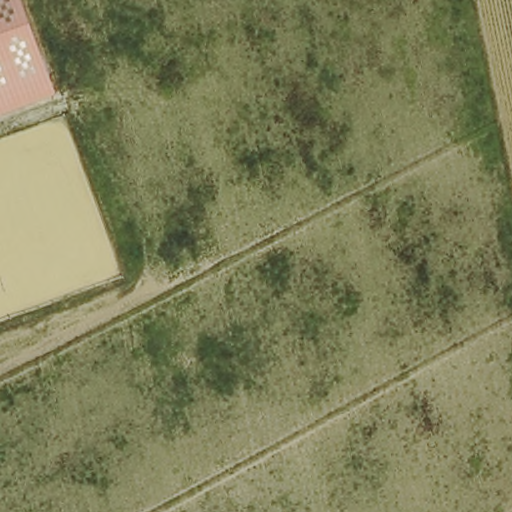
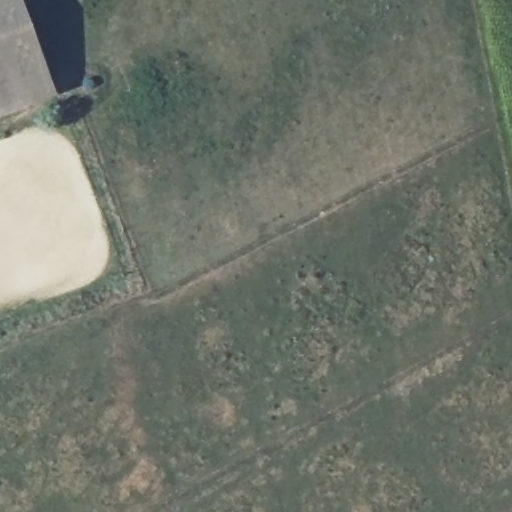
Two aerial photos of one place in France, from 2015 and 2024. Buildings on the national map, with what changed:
unchanged [(0,114),(0,0),(21,0),(55,94),(0,114)]

